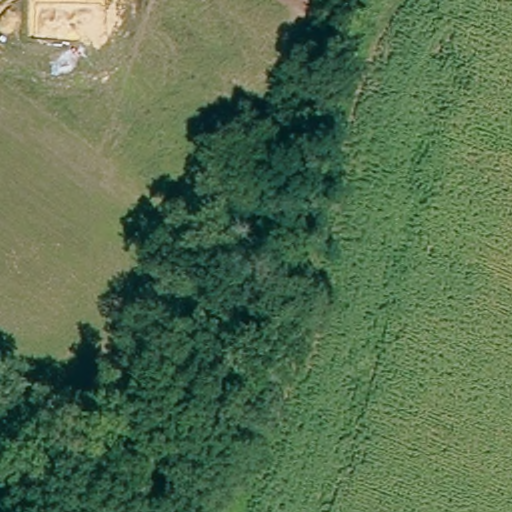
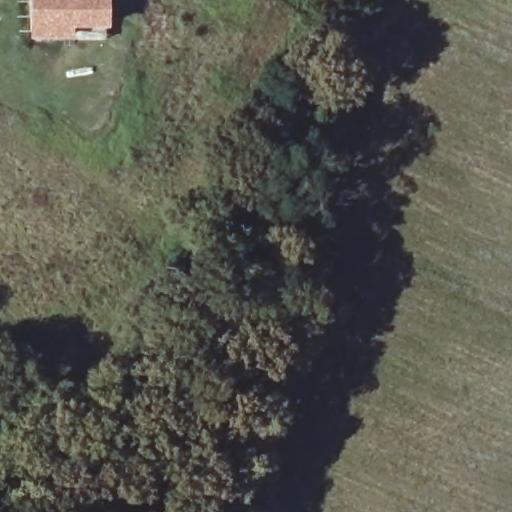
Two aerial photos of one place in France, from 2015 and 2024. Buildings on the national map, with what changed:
new [(109,28),(74,28),(74,38),(30,37),(31,0),(109,0),(109,28)]

